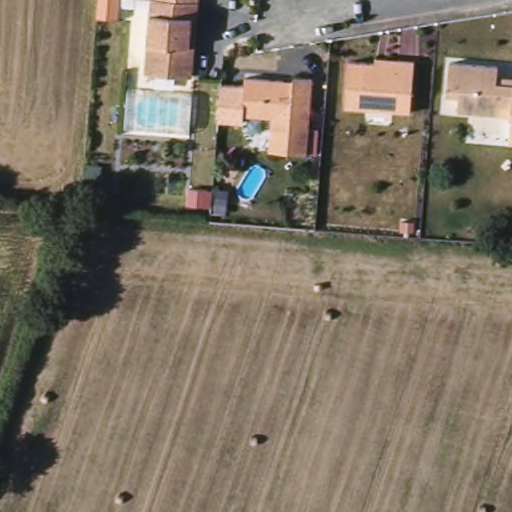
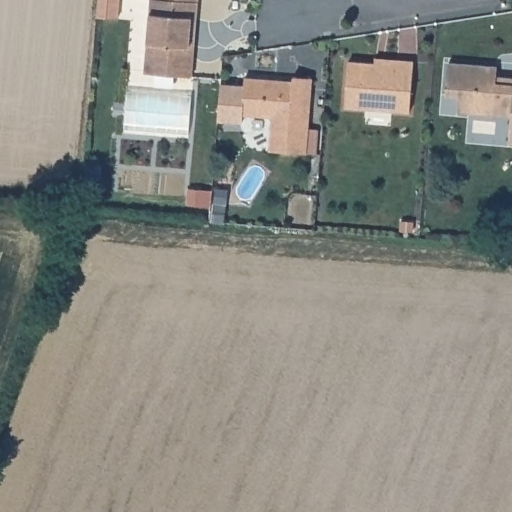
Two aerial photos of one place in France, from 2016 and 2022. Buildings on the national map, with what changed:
unchanged [(145,72),(148,31),(150,0),(168,0),(197,2),(196,19),(191,77),(186,76),(145,72)]
unchanged [(413,111),(349,106),(352,61),(379,62),(380,57),(402,59),(417,60),(413,111)]
unchanged [(504,114),(461,110),(462,95),(450,94),(452,62),(501,66),(500,76),(512,77),(512,106),(505,106),(504,114)]
unchanged [(269,149),(272,116),(242,114),(245,77),(282,81),(282,86),(292,87),(293,77),(312,78),(306,152),(269,149)]
unchanged [(512,143),(511,143),(512,125),(512,143)]
unchanged [(403,194),(416,195),(415,204),(402,203),(403,194)]

